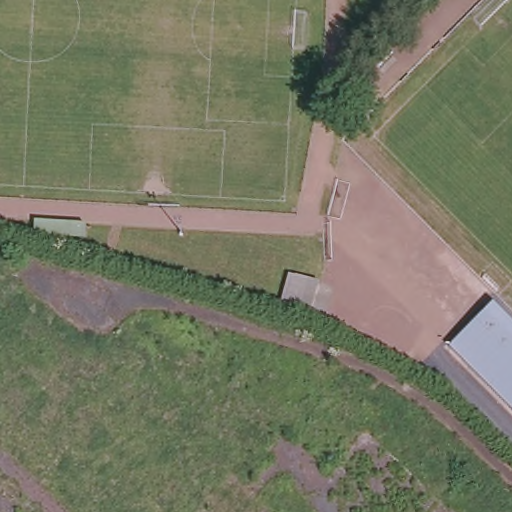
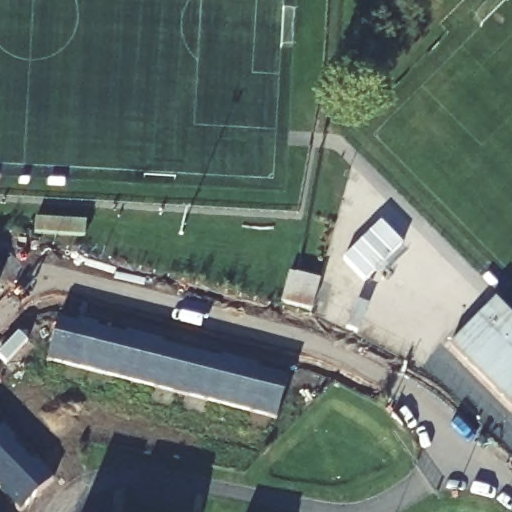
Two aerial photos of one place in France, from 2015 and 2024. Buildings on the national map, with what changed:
unchanged [(503,307),(512,315),(512,337),(490,316),(481,309),(492,297),(503,307)]
unchanged [(481,309),(490,316),(512,337),(512,402),(449,343),(481,309)]
new [(80,324),(82,317),(98,321),(97,326),(127,333),(129,328),(166,337),(165,344),(222,358),(224,351),(262,362),(260,368),(289,374),(277,416),(48,359),(60,318),(80,324)]
new [(5,422),(20,438),(14,443),(32,461),(36,457),(55,476),(22,509),(0,487),(0,427),(5,422)]

